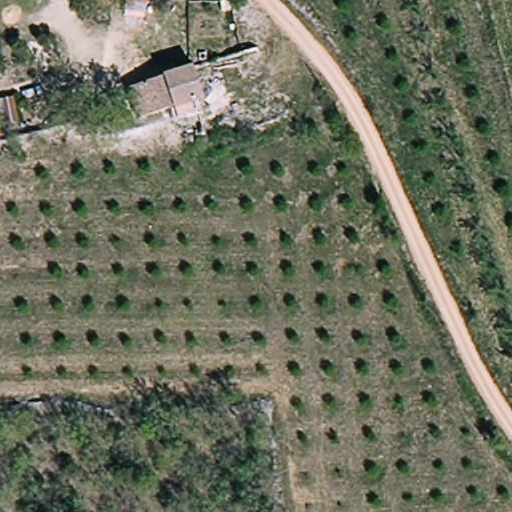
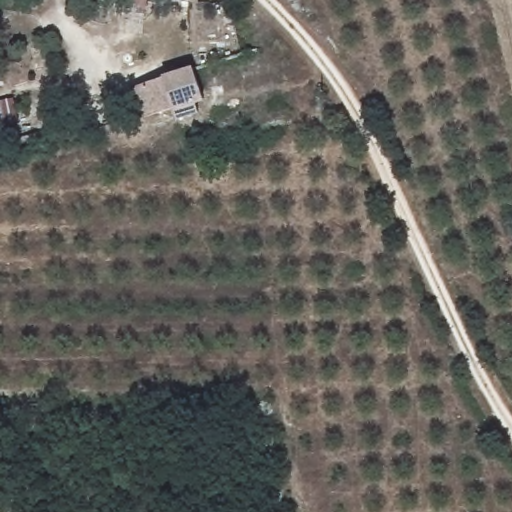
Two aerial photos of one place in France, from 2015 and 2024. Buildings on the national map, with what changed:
unchanged [(193,102),(148,118),(132,125),(121,94),(183,73),(193,102)]

